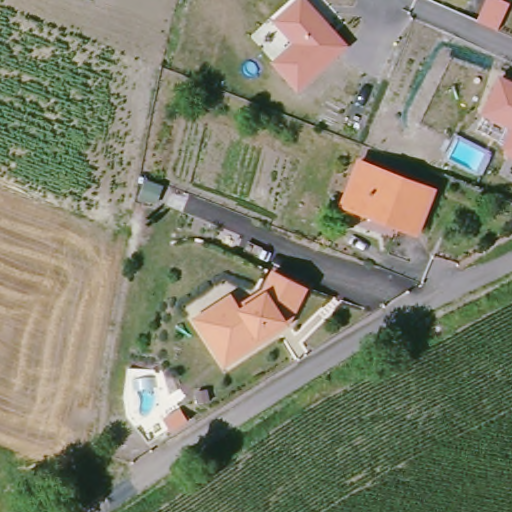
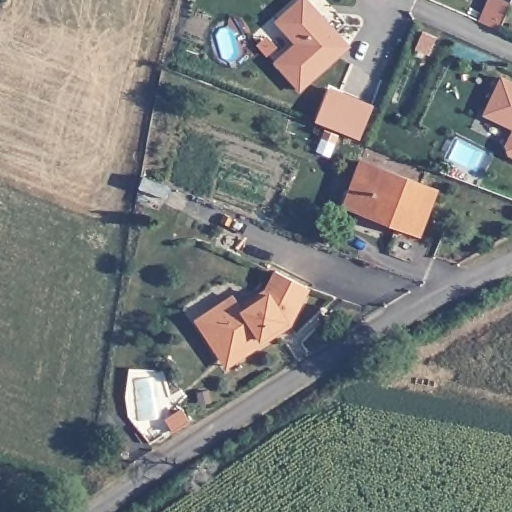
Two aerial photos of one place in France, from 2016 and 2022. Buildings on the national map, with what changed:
unchanged [(274,64),(296,46),(276,24),(303,0),(309,0),(352,47),(302,95),(274,64)]
unchanged [(481,22),(490,0),(503,0),(512,4),(512,6),(501,31),(481,22)]
unchanged [(503,77),(512,81),(512,131),(484,117),(503,77)]
new [(329,91),(373,107),(360,140),(317,124),(329,91)]
unchanged [(505,147),(512,134),(512,157),(507,154),(505,147)]
unchanged [(341,206),(357,163),(430,191),(413,233),(341,206)]
unchanged [(192,322),(188,317),(228,295),(233,306),(235,310),(264,296),(261,291),(271,272),(303,286),(284,326),(254,345),(232,356),(216,365),(207,350),(192,322)]

